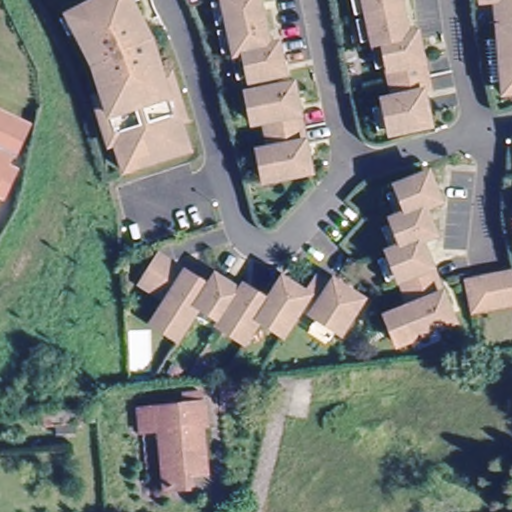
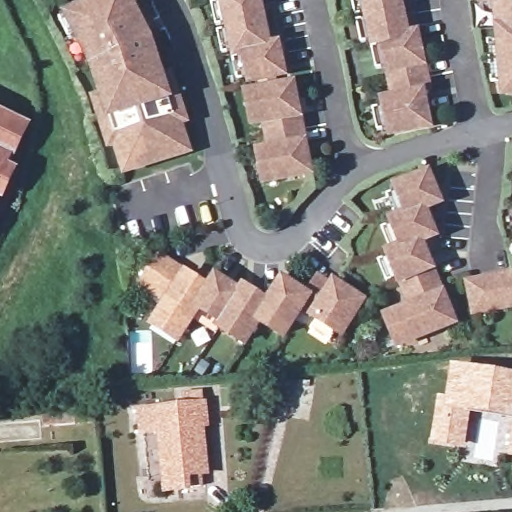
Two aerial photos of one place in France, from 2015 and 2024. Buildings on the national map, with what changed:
unchanged [(98,95),(89,67),(101,65),(96,50),(85,56),(71,30),(63,34),(55,18),(64,14),(90,0),(131,0),(126,2),(137,22),(130,26),(141,52),(149,50),(156,75),(165,72),(180,120),(174,121),(183,150),(118,170),(110,142),(104,144),(89,96),(98,95)]
unchanged [(250,50),(250,46),(240,48),(240,45),(227,47),(223,26),(235,24),(234,16),(222,20),(217,0),(264,0),(273,41),(282,39),(288,69),(254,75),(254,72),(243,74),(238,52),(250,50)]
unchanged [(394,106),(393,101),(405,99),(399,67),(385,70),(382,46),(394,45),(394,43),(384,44),(383,41),(371,42),(367,20),(379,18),(378,13),(365,15),(362,0),(409,0),(417,36),(426,34),(438,93),(432,94),(439,126),(400,134),(399,130),(387,131),(382,108),(394,106)]
unchanged [(510,36),(509,24),(503,24),(501,0),(512,0),(512,79),(500,79),(498,37),(510,36)]
unchanged [(270,115),(257,117),(252,89),(264,86),(298,80),(314,167),(281,173),(268,175),(263,146),(276,144),(270,115)]
unchanged [(19,123),(28,127),(16,152),(6,147),(6,149),(13,152),(0,178),(0,111),(20,121),(19,123)]
unchanged [(420,308),(407,277),(395,282),(386,261),(398,256),(397,253),(399,252),(390,229),(401,224),(400,220),(404,219),(395,195),(407,191),(405,187),(437,175),(448,204),(432,209),(443,236),(429,242),(461,322),(417,340),(405,345),(395,317),(406,313),(420,308)]
unchanged [(322,318),(304,307),(293,325),(286,335),(262,319),(254,331),(247,342),(221,325),(224,320),(202,305),(187,328),(180,338),(156,322),(163,311),(171,300),(145,282),(163,256),(212,287),(219,276),(243,292),(247,286),(271,302),(285,280),(310,295),(322,277),(334,286),(337,282),(365,300),(344,333),(340,331),(334,341),(315,330),(322,318)]
unchanged [(472,283),(512,275),(512,305),(477,311),(472,283)]
new [(438,395),(447,396),(452,364),(512,371),(512,419),(473,412),(466,449),(430,444),(438,395)]
unchanged [(150,427),(133,430),(131,408),(176,403),(175,391),(190,390),(193,423),(189,423),(194,470),(175,472),(177,485),(156,486),(150,427)]
unchanged [(78,426),(43,425),(43,411),(93,407),(95,439),(78,439),(78,426)]
new [(509,455),(512,434),(512,456),(509,455)]

